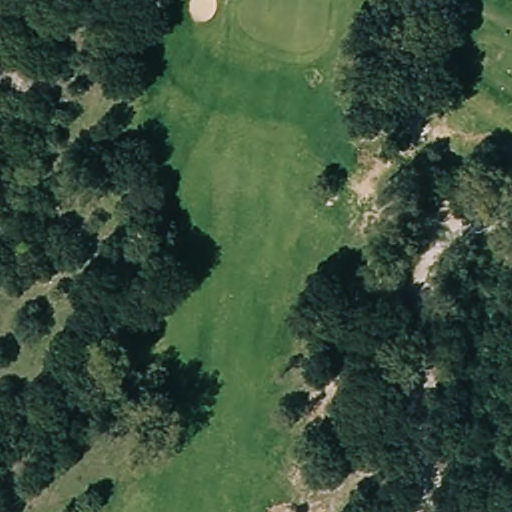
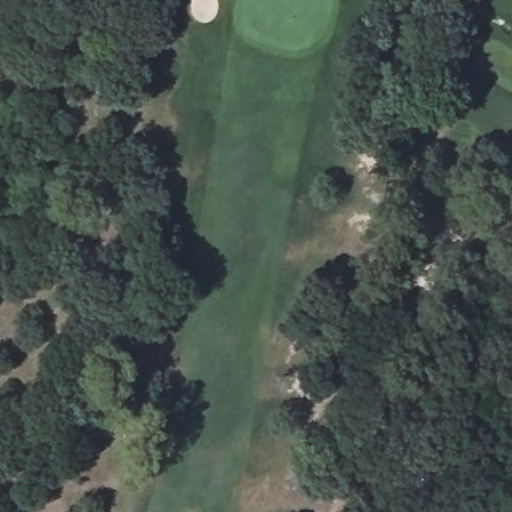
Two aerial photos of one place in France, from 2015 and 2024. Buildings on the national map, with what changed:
unchanged [(512,493),(512,512),(509,512),(505,495),(512,493)]

